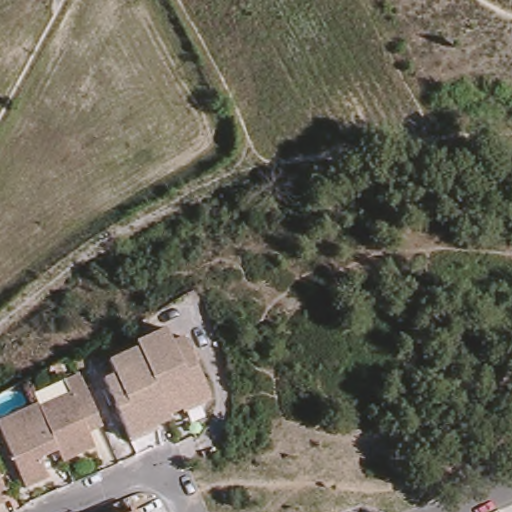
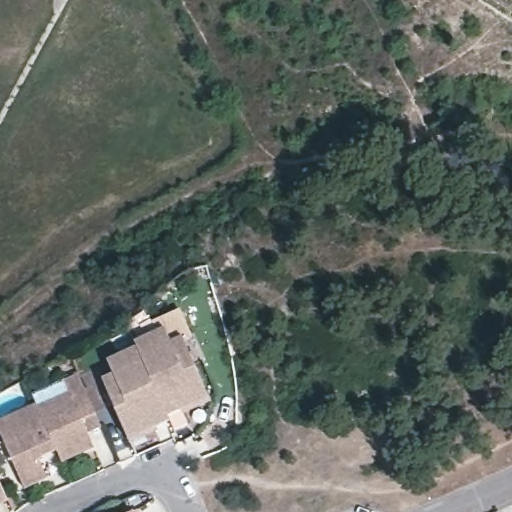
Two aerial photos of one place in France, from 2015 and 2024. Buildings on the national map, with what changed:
unchanged [(166,419),(135,348),(133,344),(164,331),(170,345),(181,340),(208,401),(210,405),(183,417),(181,412),(166,419)]
unchanged [(100,383),(110,378),(103,362),(135,348),(166,419),(168,424),(155,430),(156,435),(128,447),(126,443),(100,383)]
unchanged [(89,436),(95,449),(65,463),(60,451),(41,409),(70,395),(65,384),(81,377),(98,415),(104,429),(89,436)]
unchanged [(0,422),(40,404),(41,409),(60,451),(41,458),(50,480),(28,490),(19,469),(6,475),(0,463),(0,445),(6,441),(0,426),(0,422)]
unchanged [(0,504),(0,480),(9,500),(0,504)]
unchanged [(147,512),(141,512),(146,510),(147,512)]

